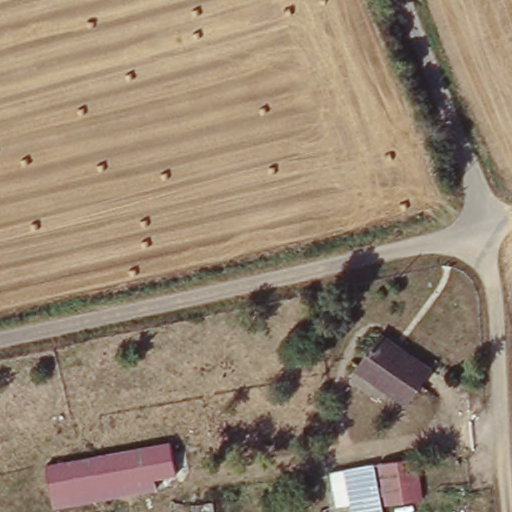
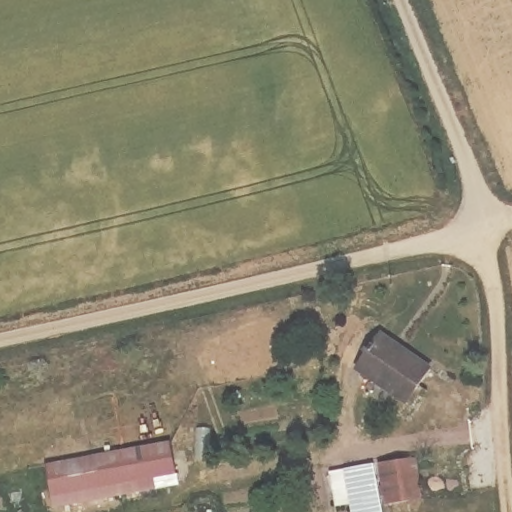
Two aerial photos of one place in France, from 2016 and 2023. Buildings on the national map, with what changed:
unchanged [(352,374),(375,336),(429,372),(404,410),(352,374)]
unchanged [(41,472),(166,448),(173,478),(150,484),(151,496),(74,512),(50,512),(41,472)]
unchanged [(382,512),(375,470),(416,466),(423,506),(382,512)]
unchanged [(340,475),(369,470),(378,512),(348,512),(340,475)]

